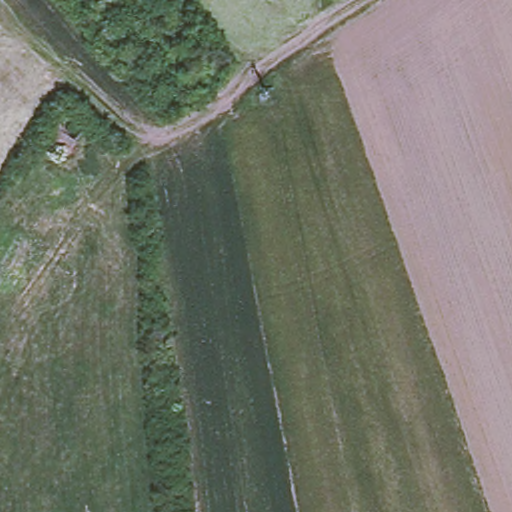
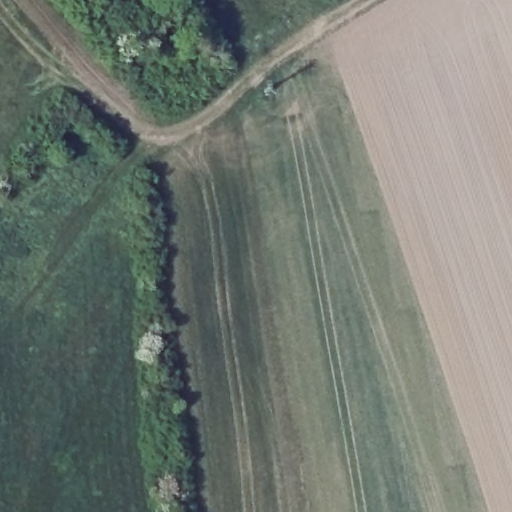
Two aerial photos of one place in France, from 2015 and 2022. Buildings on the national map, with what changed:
unchanged [(67,107),(91,122),(71,156),(46,139),(67,107)]

